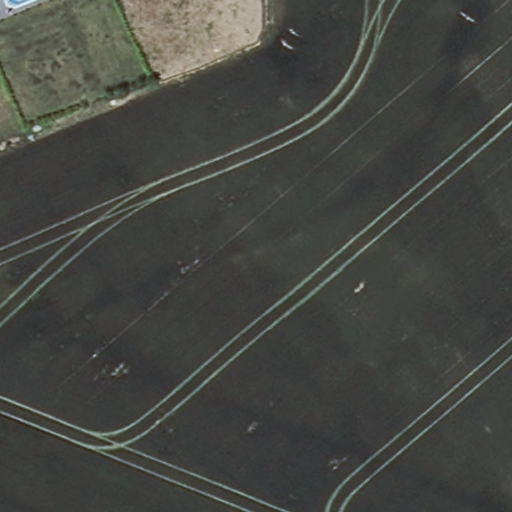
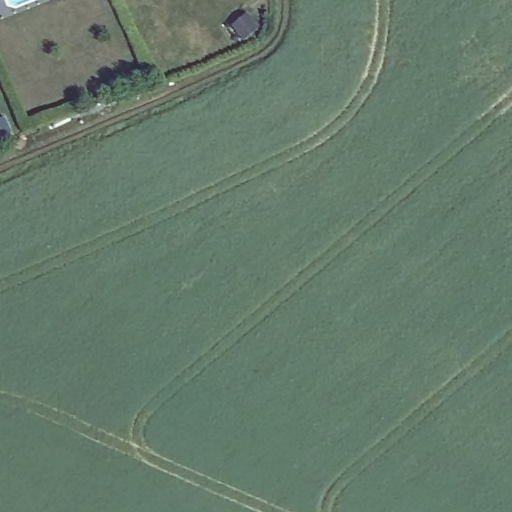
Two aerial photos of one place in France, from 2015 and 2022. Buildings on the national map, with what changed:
[]

